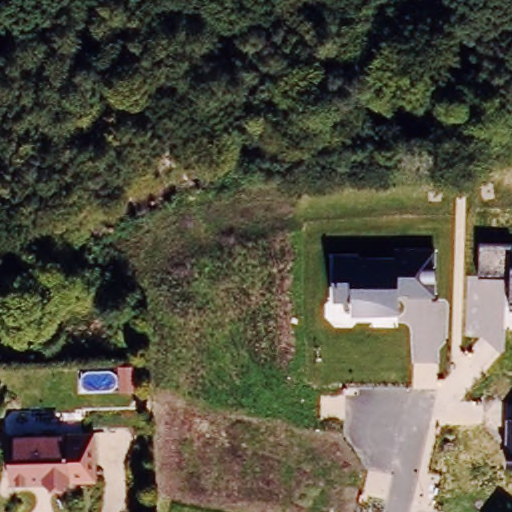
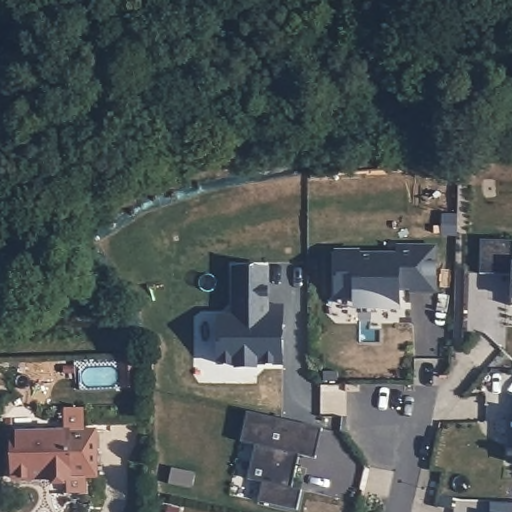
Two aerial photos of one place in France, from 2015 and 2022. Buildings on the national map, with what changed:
unchanged [(510,275),(480,273),(480,242),(512,243),(512,307),(510,307),(510,275)]
unchanged [(437,293),(401,295),(400,310),(354,313),(353,299),(335,300),(335,252),(395,252),(395,244),(437,246),(437,293)]
new [(216,317),(232,318),(232,269),(266,270),(266,308),(281,308),(281,331),(277,331),(277,342),(281,342),(280,366),(255,366),(255,370),(235,370),(235,365),(216,365),(216,317)]
new [(325,425),(316,455),(296,450),(293,460),(296,462),(290,483),(300,486),(293,509),(252,498),(257,480),(242,476),(251,441),(237,438),(245,407),(325,425)]
unchanged [(507,418),(512,416),(512,465),(506,465),(507,418)]
unchanged [(6,480),(5,439),(62,437),(64,484),(40,485),(6,485),(6,480)]

